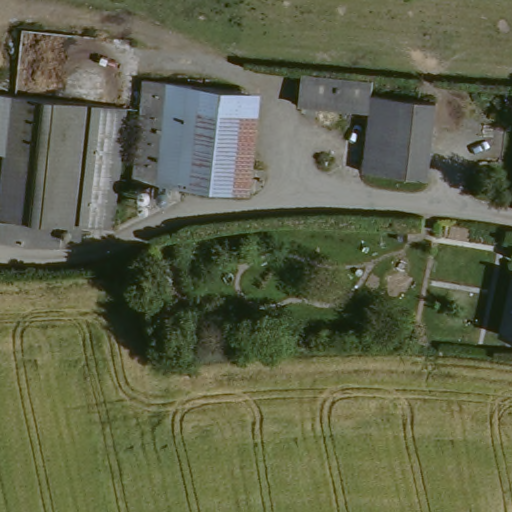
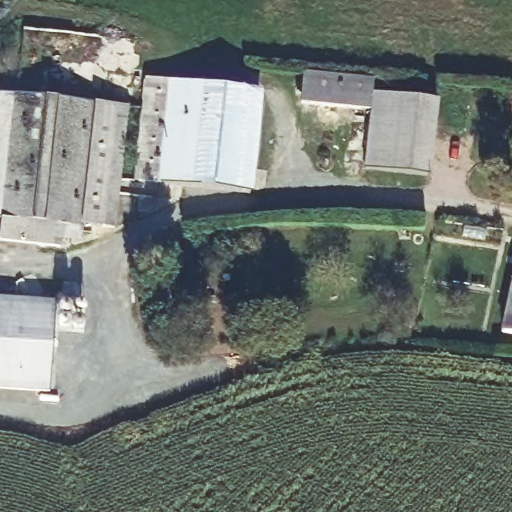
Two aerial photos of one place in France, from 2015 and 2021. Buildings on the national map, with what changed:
unchanged [(302,105),(306,75),(375,82),(373,97),(371,113),(302,105)]
unchanged [(210,88),(199,189),(150,184),(161,82),(210,88)]
unchanged [(210,88),(258,93),(247,195),(199,189),(210,88)]
unchanged [(512,120),(505,120),(507,99),(509,89),(512,89),(512,120)]
unchanged [(58,232),(0,226),(0,187),(10,94),(122,106),(111,213),(80,210),(79,217),(60,215),(59,223),(58,232)]
unchanged [(365,171),(368,139),(371,113),(373,97),(435,104),(432,142),(428,178),(365,171)]
unchanged [(161,287),(145,287),(145,247),(161,247),(161,287)]
unchanged [(512,275),(512,331),(502,328),(512,275)]
new [(56,300),(51,390),(0,387),(0,297),(56,300)]

